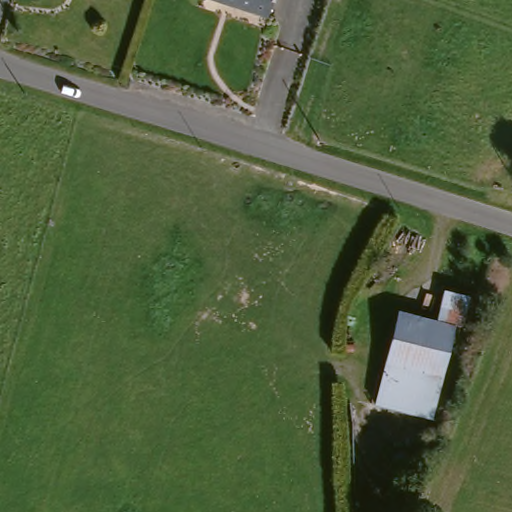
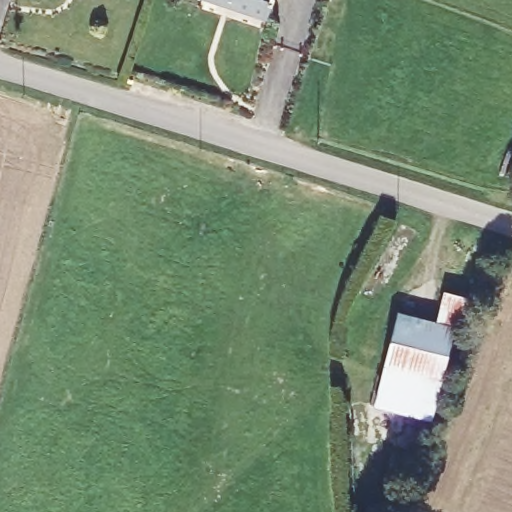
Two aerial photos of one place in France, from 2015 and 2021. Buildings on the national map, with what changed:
unchanged [(267,17),(220,0),(273,0),(267,17)]
unchanged [(424,422),(372,402),(399,323),(452,342),(424,422)]

